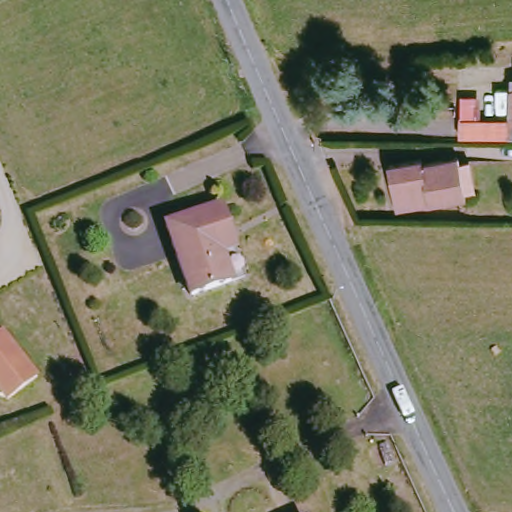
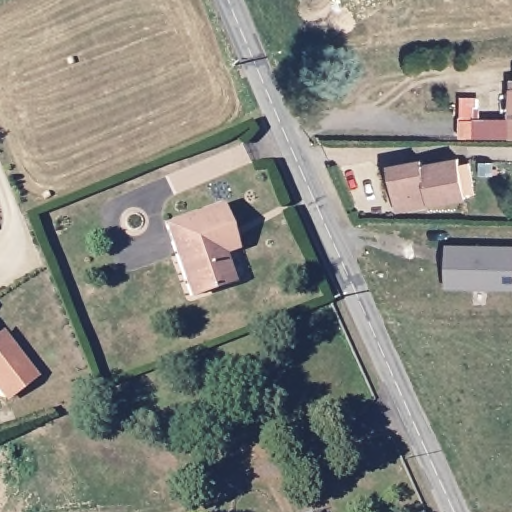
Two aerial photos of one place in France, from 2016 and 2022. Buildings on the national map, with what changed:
unchanged [(463,120),(463,104),(477,104),(477,120),(512,120),(512,138),(463,137),(463,120)]
unchanged [(397,204),(390,164),(423,159),(425,164),(462,159),(469,201),(432,207),(399,212),(397,204)]
unchanged [(190,293),(167,222),(222,204),(229,223),(237,245),(222,251),(232,280),(190,293)]
new [(452,244),(512,246),(512,287),(450,286),(452,244)]
unchanged [(4,331),(37,374),(8,396),(0,385),(0,334),(4,331)]

